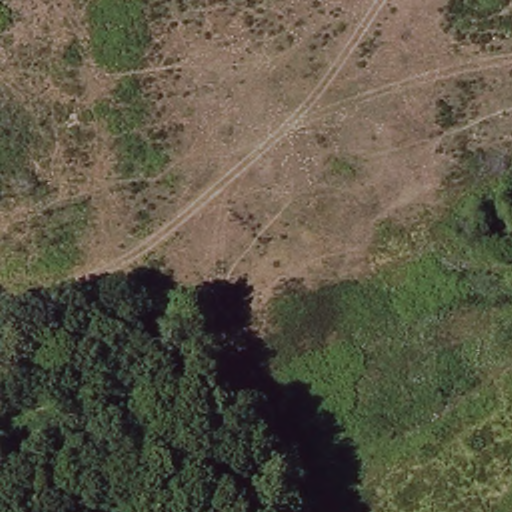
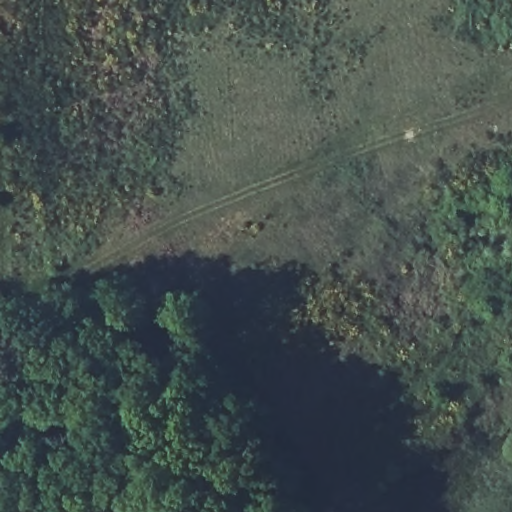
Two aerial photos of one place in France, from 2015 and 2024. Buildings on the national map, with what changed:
[]

